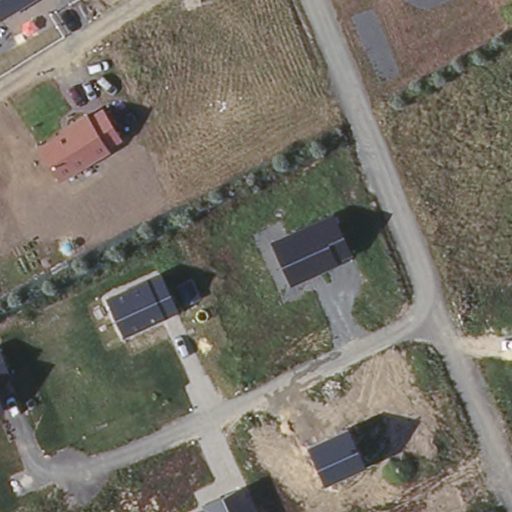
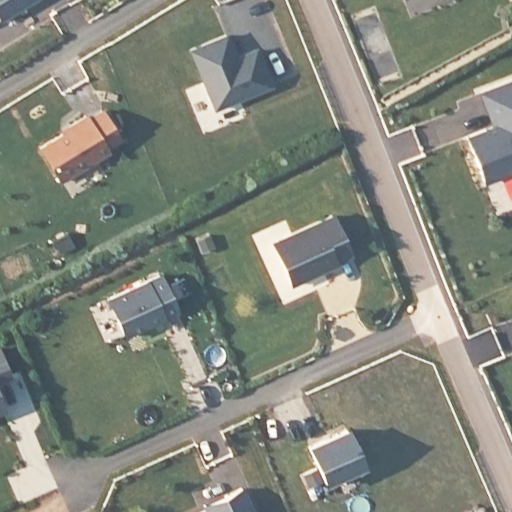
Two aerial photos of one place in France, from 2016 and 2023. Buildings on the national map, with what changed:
unchanged [(0,0),(33,0),(0,20),(0,0)]
new [(215,35),(228,62),(257,49),(271,81),(218,104),(190,47),(215,35)]
new [(482,179),(465,135),(493,123),(481,92),(512,78),(512,166),(482,179)]
unchanged [(111,151),(60,182),(40,146),(62,132),(60,129),(87,113),(89,117),(103,107),(123,140),(111,151)]
unchanged [(290,283),(271,242),(334,214),(354,256),(290,283)]
unchanged [(123,337),(106,297),(160,271),(178,311),(123,337)]
unchanged [(0,377),(0,346),(12,372),(0,377)]
unchanged [(0,393),(7,407),(0,410),(0,393)]
unchanged [(324,483),(306,445),(347,426),(365,463),(324,483)]
unchanged [(206,509),(203,503),(243,486),(256,512),(200,512),(206,509)]

